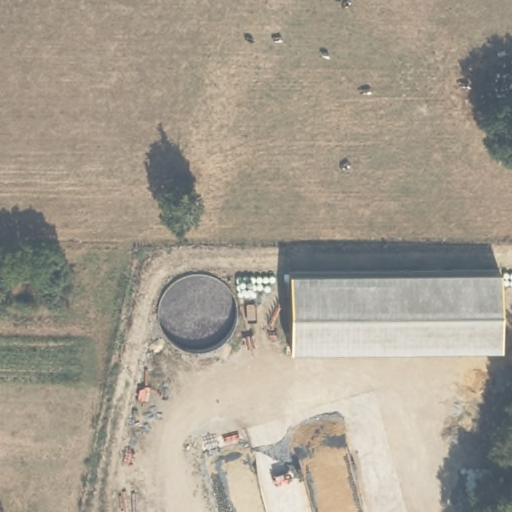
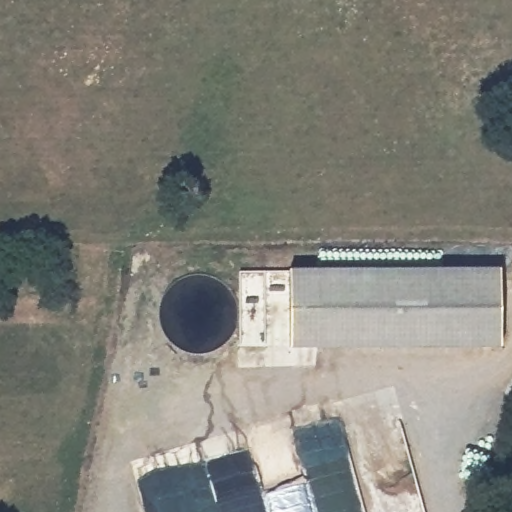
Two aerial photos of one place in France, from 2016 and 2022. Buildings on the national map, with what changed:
unchanged [(499,271),(504,350),(286,348),(286,271),(499,271)]

